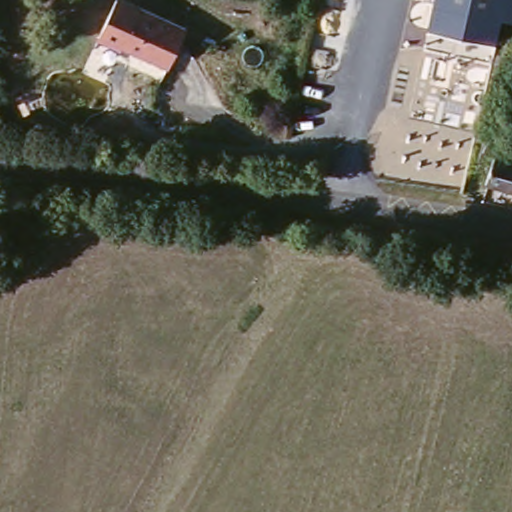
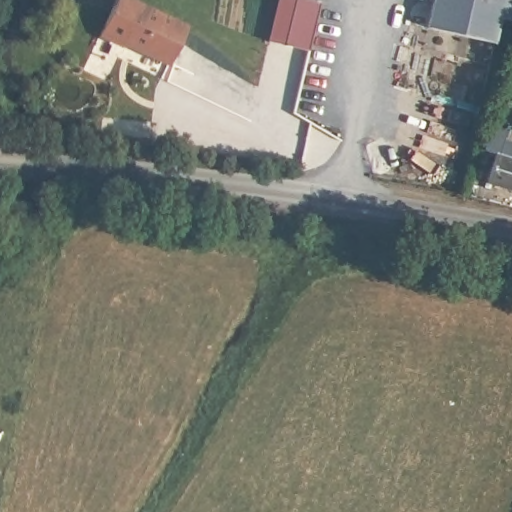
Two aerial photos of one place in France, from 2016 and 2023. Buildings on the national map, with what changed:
unchanged [(119,47),(97,38),(114,0),(143,0),(122,39),(119,47)]
unchanged [(174,57),(162,53),(159,56),(122,39),(143,0),(144,0),(191,23),(174,57)]
new [(311,54),(267,45),(276,0),(298,0),(322,6),(311,54)]
unchanged [(498,43),(431,28),(437,0),(512,0),(512,22),(503,20),(498,43)]
unchanged [(500,136),(501,142),(512,144),(512,190),(487,187),(492,161),(477,156),(482,144),(487,132),(500,136)]

